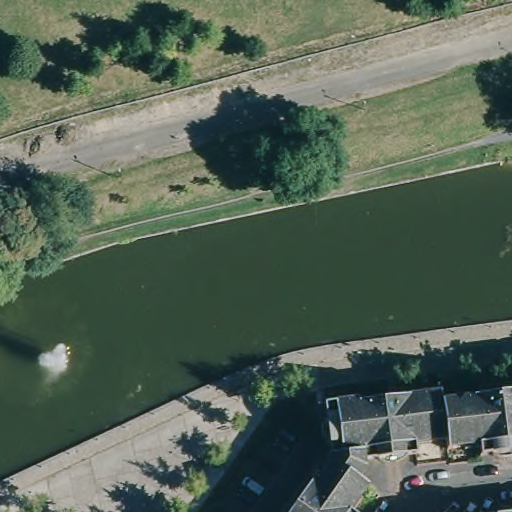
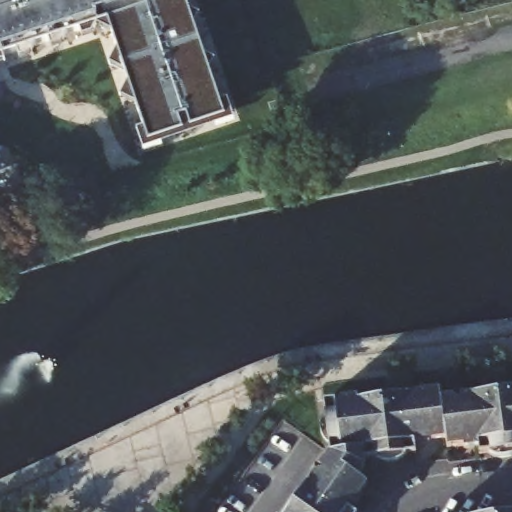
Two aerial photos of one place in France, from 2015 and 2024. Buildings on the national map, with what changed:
new [(143,128),(104,18),(0,51),(0,0),(183,0),(216,107),(143,128)]
unchanged [(295,510),(304,497),(311,495),(315,497),(318,493),(309,487),(318,474),(325,464),(336,447),(334,448),(328,396),(361,392),(362,404),(371,403),(371,396),(394,392),(396,399),(404,399),(403,389),(443,384),(443,393),(484,388),(484,399),(489,398),(489,391),(512,388),(512,444),(482,448),(482,443),(481,437),(481,432),(467,434),(467,439),(449,441),(449,431),(432,433),(431,429),(417,431),(418,435),(419,447),(371,454),(371,452),(369,452),(370,457),(371,461),(369,463),(363,472),(371,479),(354,505),(363,512),(297,512),(295,510)]

